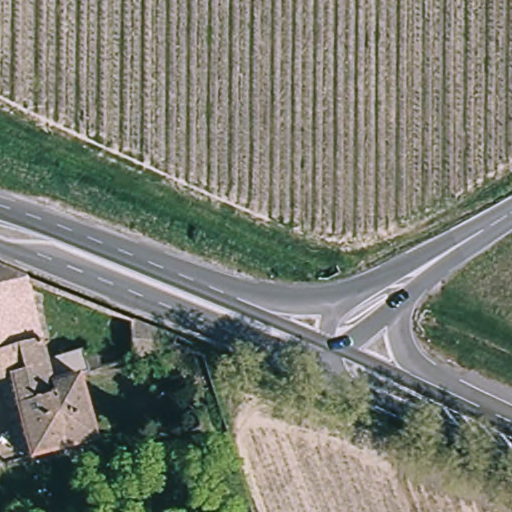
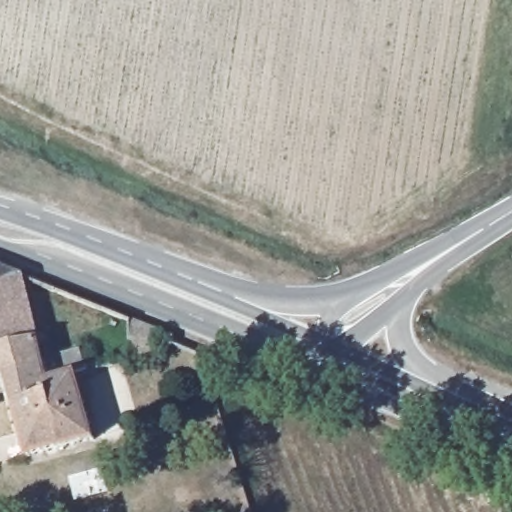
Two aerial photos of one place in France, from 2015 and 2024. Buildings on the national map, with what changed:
unchanged [(0,261),(18,268),(35,334),(0,341),(0,261)]
unchanged [(184,334),(183,349),(131,362),(133,353),(143,317),(184,334)]
unchanged [(77,377),(93,442),(26,458),(5,379),(0,380),(0,341),(35,334),(48,383),(77,377)]

